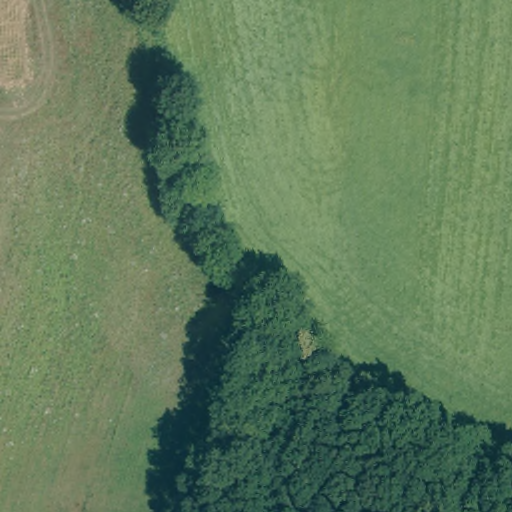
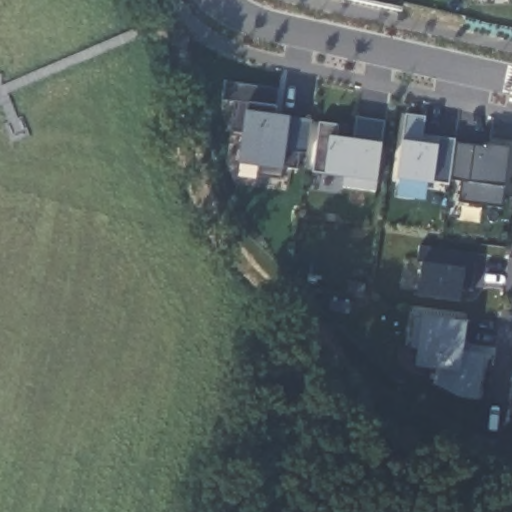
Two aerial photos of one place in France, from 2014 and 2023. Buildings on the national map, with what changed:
new [(226,83),(278,90),(275,106),(274,115),(290,117),(311,120),(307,154),(298,153),(296,169),(280,168),(279,178),(258,175),(259,167),(238,164),(247,104),(223,100),(226,83)]
new [(454,138),(448,183),(434,181),(434,185),(398,180),(402,140),(405,114),(425,117),(423,135),(454,138)]
new [(337,137),(353,139),(356,117),(385,120),(376,190),(343,186),(344,176),(312,172),(319,122),(339,124),(337,137)]
new [(459,202),(461,181),(450,180),(455,142),(489,146),(489,143),(511,146),(502,208),(459,202)]
new [(419,245),(477,254),(472,290),(463,289),(461,301),(420,295),(423,263),(416,262),(419,245)]
new [(462,350),(484,353),(477,400),(459,397),(434,384),(436,369),(416,365),(422,316),(466,322),(462,350)]

